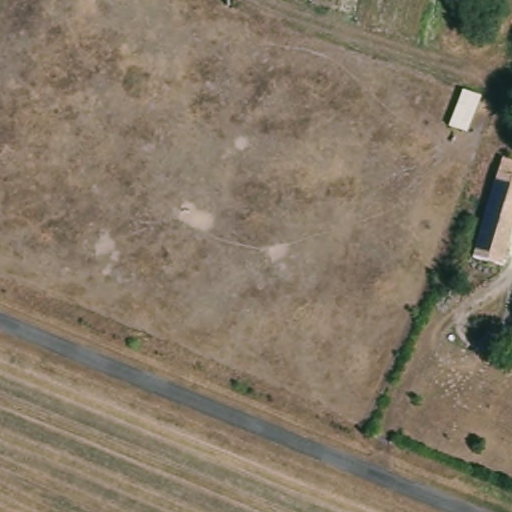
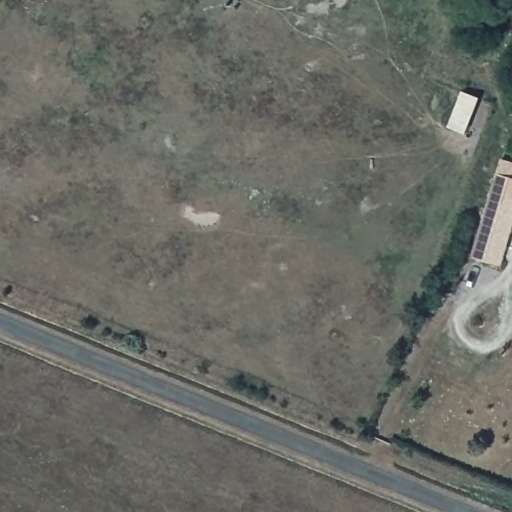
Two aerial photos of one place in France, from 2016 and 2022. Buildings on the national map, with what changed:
unchanged [(497,173),(502,156),(512,159),(512,240),(505,265),(475,258),(497,173)]

